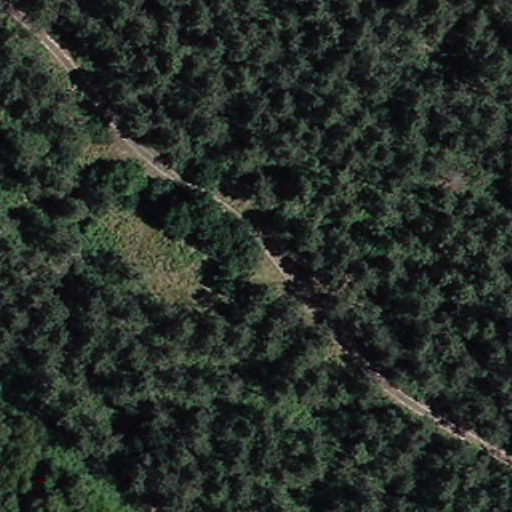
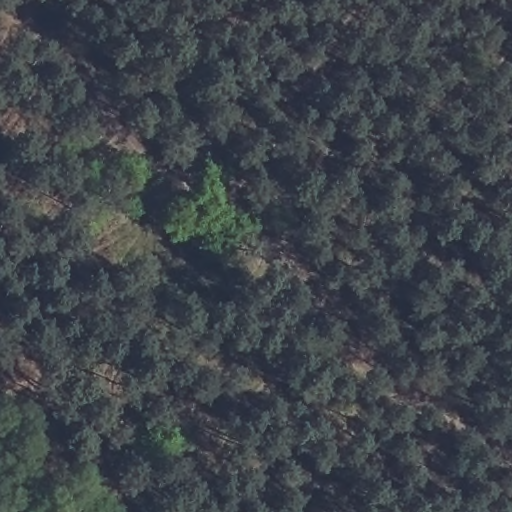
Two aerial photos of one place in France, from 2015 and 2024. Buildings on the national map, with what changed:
unchanged [(223,269),(160,227),(179,200),(239,244),(223,269)]
unchanged [(206,288),(144,248),(160,227),(223,269),(206,288)]

